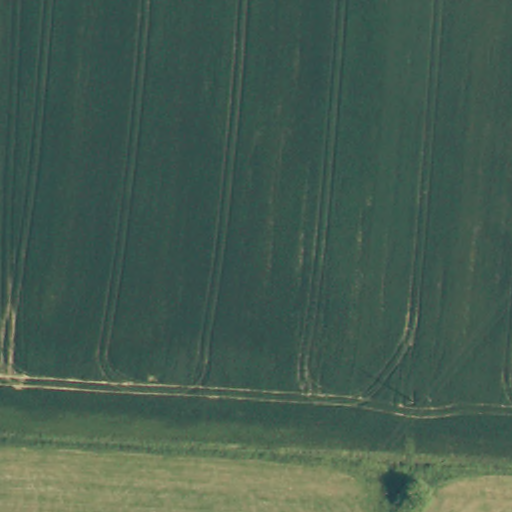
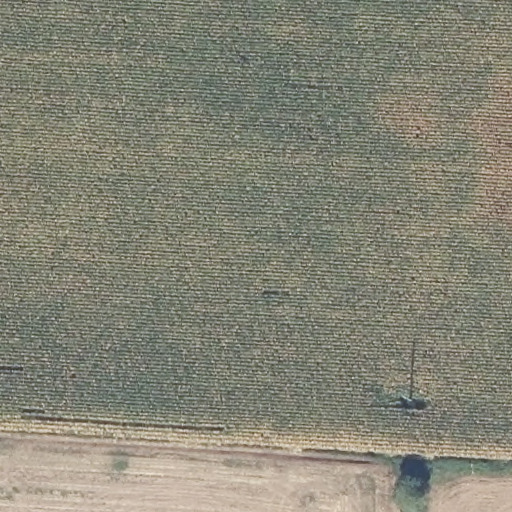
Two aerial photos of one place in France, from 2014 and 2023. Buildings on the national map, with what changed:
[]

